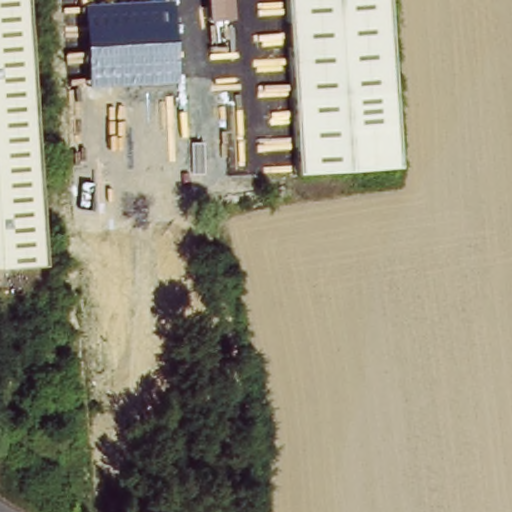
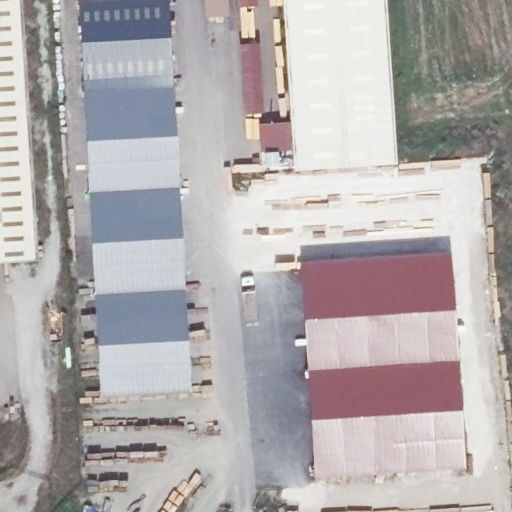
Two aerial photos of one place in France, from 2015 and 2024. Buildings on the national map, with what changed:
unchanged [(0,0),(21,0),(40,265),(0,268),(0,0)]
new [(169,0),(191,394),(100,400),(78,1),(103,0),(169,0)]
unchanged [(291,166),(280,0),(381,0),(392,160),(291,166)]
new [(264,115),(243,115),(240,46),(260,45),(264,115)]
new [(329,257),(450,249),(464,469),(311,479),(301,319),(298,261),(329,257)]

